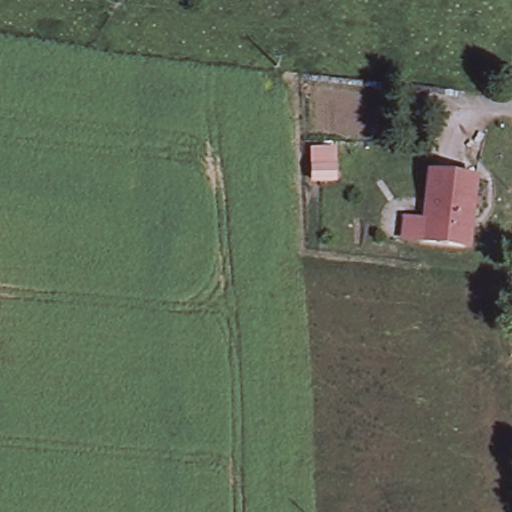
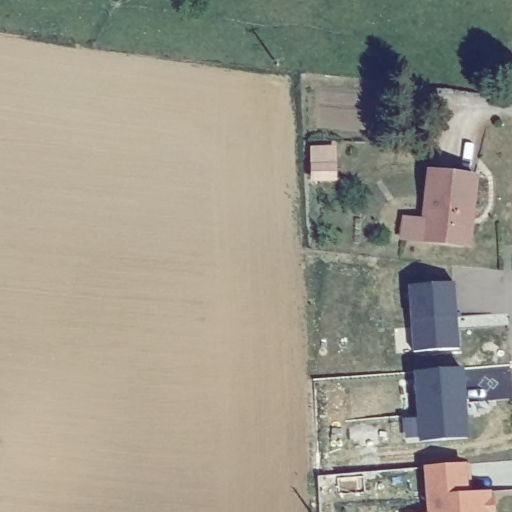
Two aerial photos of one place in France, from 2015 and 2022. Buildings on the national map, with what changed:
unchanged [(312,188),(312,172),(332,171),(332,187),(312,188)]
unchanged [(461,245),(420,241),(402,239),(404,220),(423,222),(429,173),(474,178),(469,219),(466,246),(461,245)]
new [(455,283),(460,349),(415,352),(410,288),(455,283)]
new [(465,370),(470,439),(420,441),(415,373),(465,370)]
new [(470,494),(492,493),(492,500),(492,501),(494,501),(494,512),(426,512),(424,468),(467,466),(470,494)]

